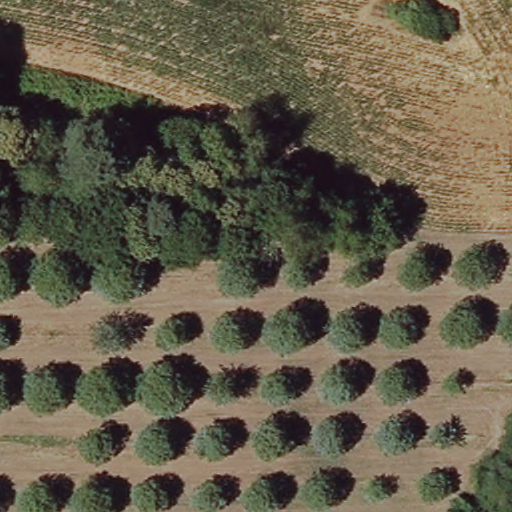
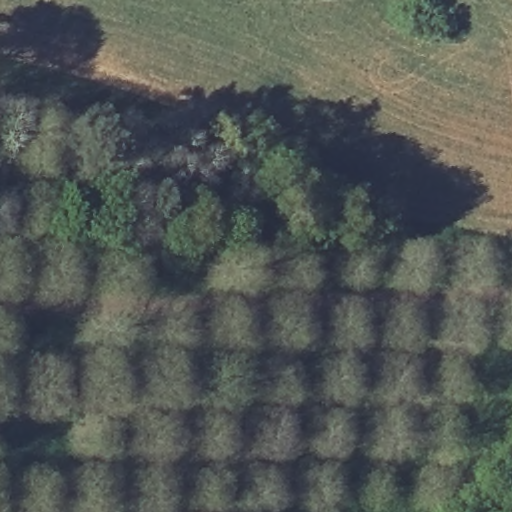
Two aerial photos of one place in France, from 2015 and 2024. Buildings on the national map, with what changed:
[]

